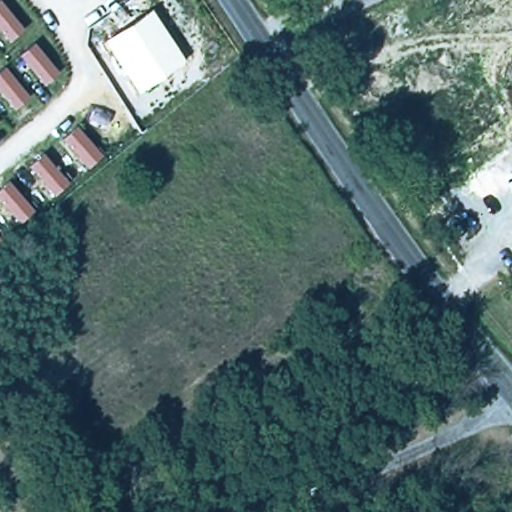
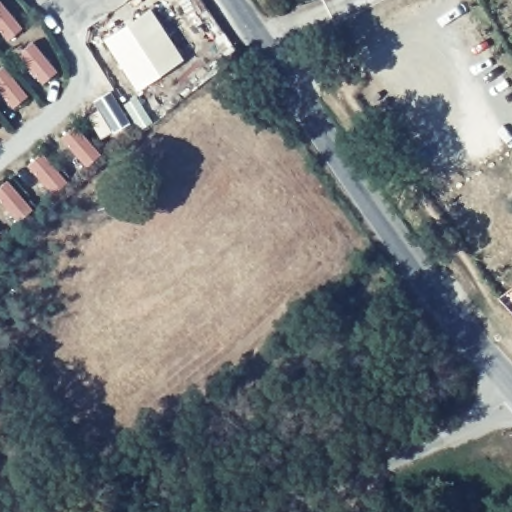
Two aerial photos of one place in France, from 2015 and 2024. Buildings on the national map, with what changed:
unchanged [(137,93),(103,40),(151,9),(184,60),(137,93)]

